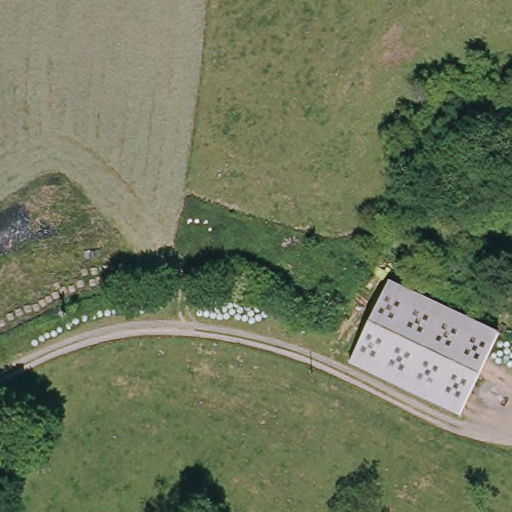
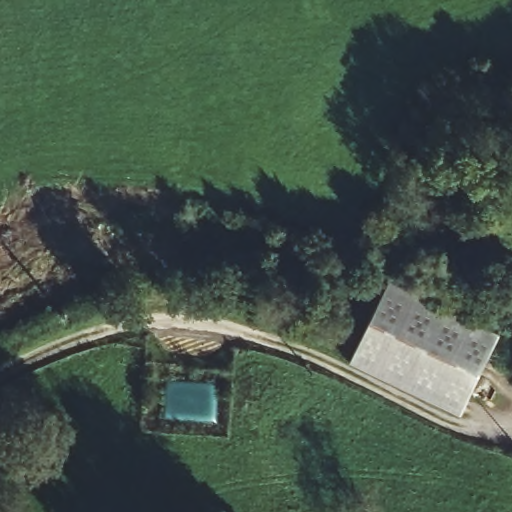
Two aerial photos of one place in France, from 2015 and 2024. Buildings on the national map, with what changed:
unchanged [(500,332),(460,416),(351,363),(388,281),(500,332)]

